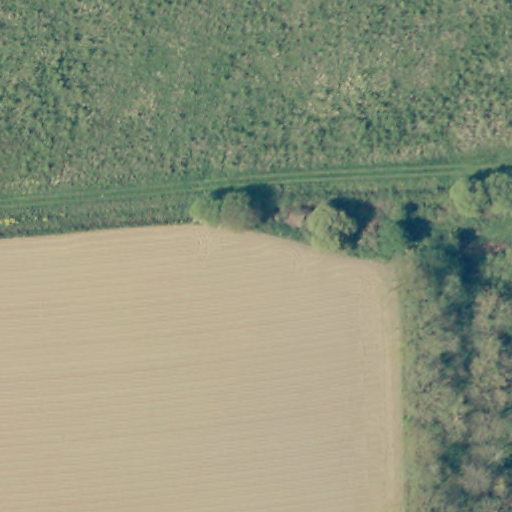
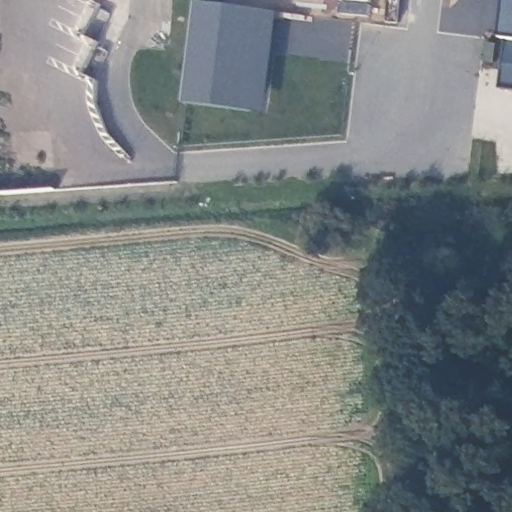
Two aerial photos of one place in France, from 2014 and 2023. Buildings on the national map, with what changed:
new [(185,105),(197,5),(277,14),(266,112),(185,105)]
new [(507,40),(512,5),(512,41),(507,40)]

